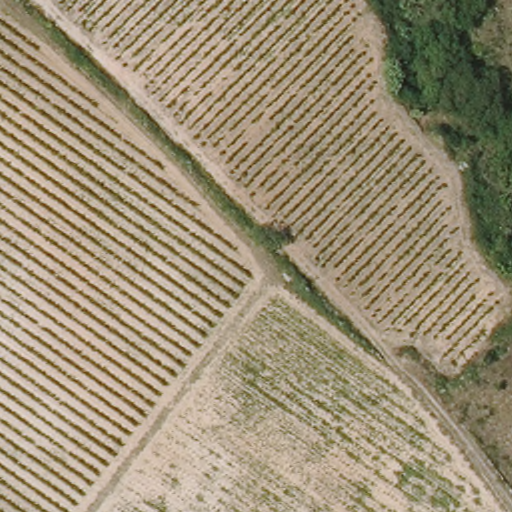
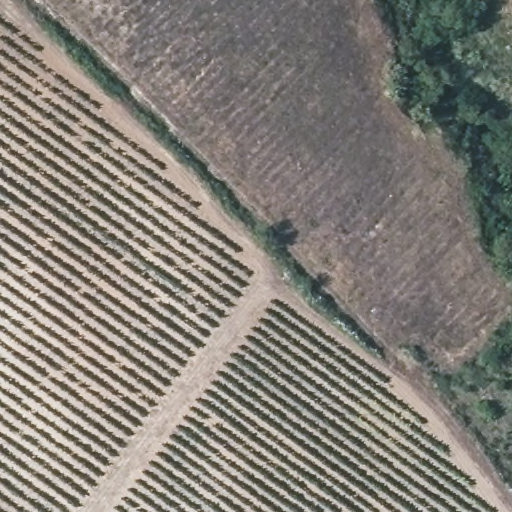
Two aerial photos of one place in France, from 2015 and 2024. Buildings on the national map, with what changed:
unchanged [(258,274),(248,255),(260,248),(270,267),(258,274)]

